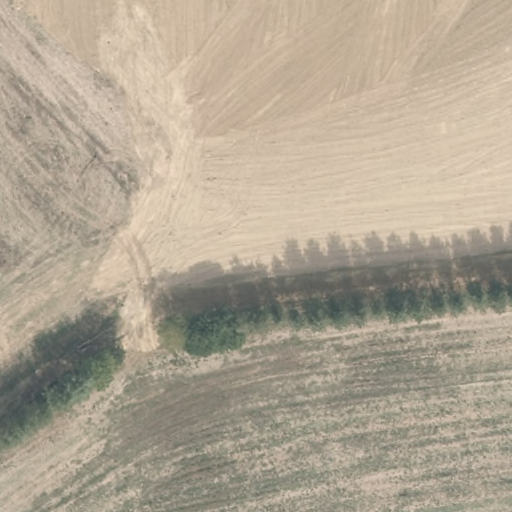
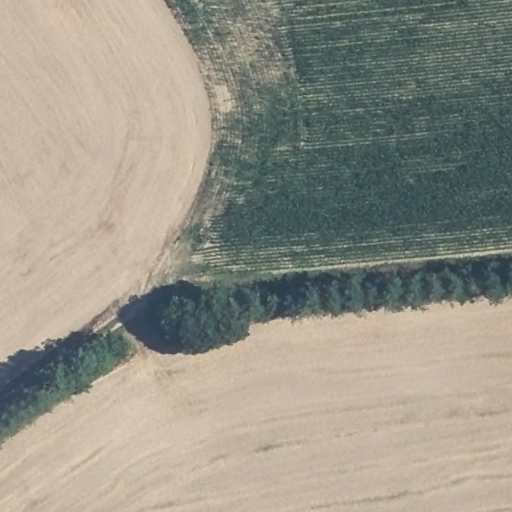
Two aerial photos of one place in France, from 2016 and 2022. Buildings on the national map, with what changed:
[]

